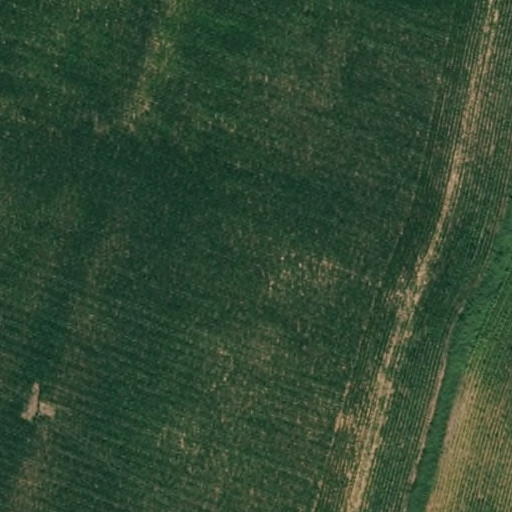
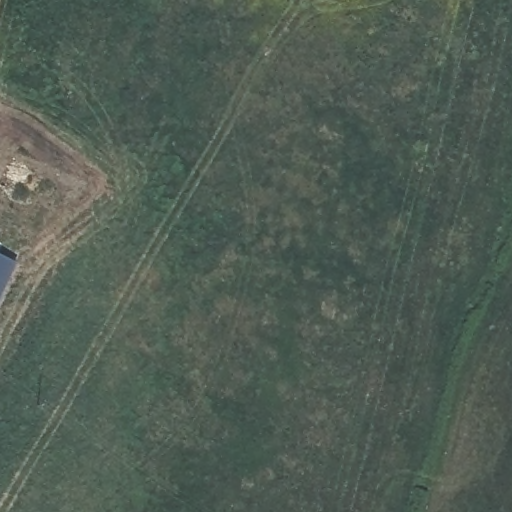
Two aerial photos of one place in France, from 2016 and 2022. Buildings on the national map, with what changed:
new [(0,298),(0,255),(17,264),(0,298)]

